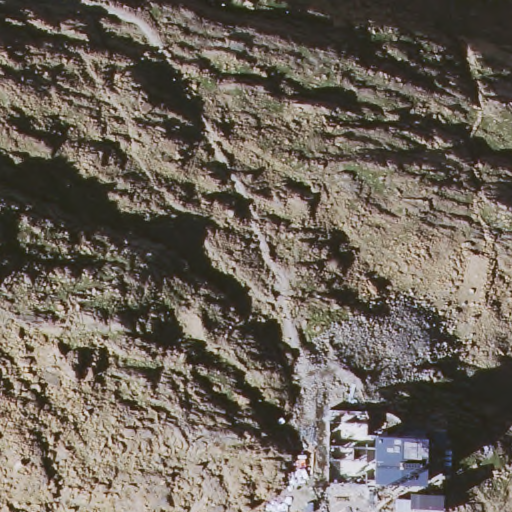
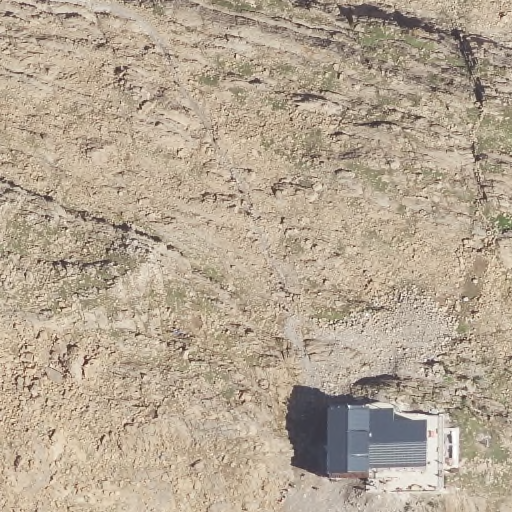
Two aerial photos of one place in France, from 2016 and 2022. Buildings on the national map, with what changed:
unchanged [(426,457),(425,479),(355,477),(357,427),(428,428),(426,457)]

